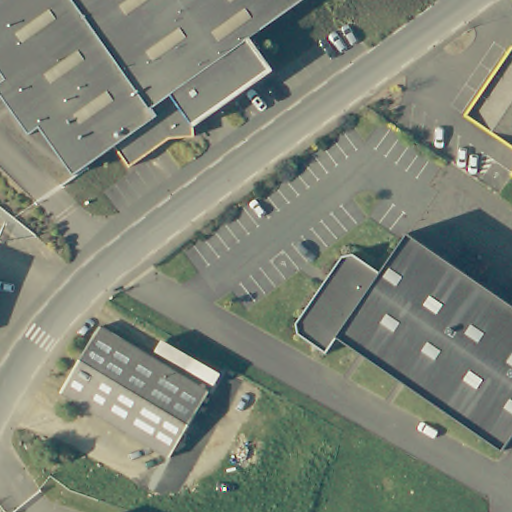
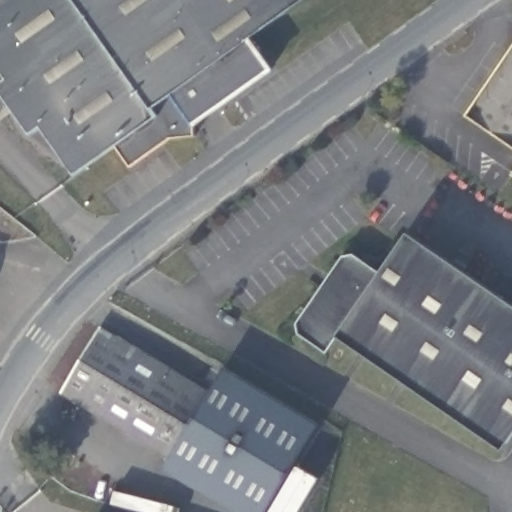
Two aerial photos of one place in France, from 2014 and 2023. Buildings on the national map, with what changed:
unchanged [(97,167),(71,127),(16,46),(0,23),(0,0),(4,0),(108,160),(97,167)]
unchanged [(227,106),(222,124),(205,123),(158,155),(145,135),(108,160),(4,0),(180,0),(244,95),(227,106)]
unchanged [(247,46),(268,77),(244,95),(180,0),(312,0),(247,46)]
unchanged [(58,135),(1,56),(16,46),(71,127),(58,135)]
unchanged [(512,54),(512,148),(468,119),(512,54)]
unchanged [(330,358),(301,337),(301,326),(347,260),(358,258),(385,277),(412,237),(512,307),(512,450),(507,457),(342,341),(330,358)]
unchanged [(212,388),(177,453),(65,394),(99,327),(212,388)]
new [(234,512),(165,470),(174,452),(177,453),(212,388),(226,367),(320,424),(268,512),(234,512)]

